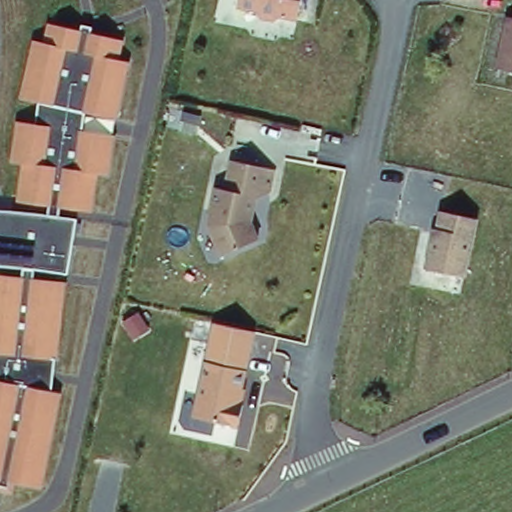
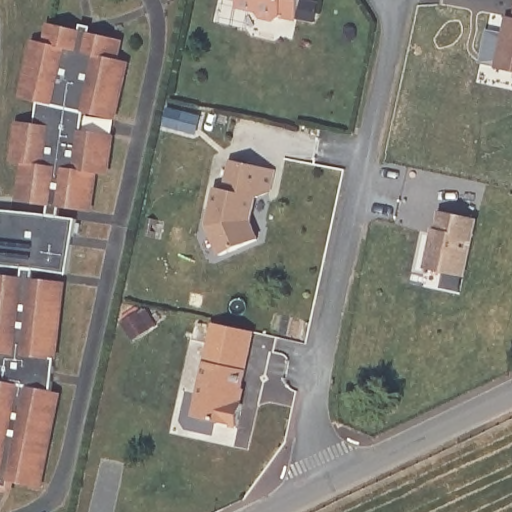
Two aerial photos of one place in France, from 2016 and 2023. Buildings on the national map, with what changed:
unchanged [(302,17),(286,14),(278,19),(266,15),(261,9),(242,4),(243,0),(306,0),(302,17)]
unchanged [(510,11),(512,11),(512,67),(498,64),(510,11)]
unchanged [(12,212),(20,165),(7,162),(15,119),(32,121),(37,101),(16,95),(29,38),(37,39),(43,16),(122,37),(120,60),(131,65),(119,121),(90,116),(85,133),(112,140),(107,174),(97,174),(92,212),(54,209),(53,218),(74,221),(65,273),(41,270),(37,281),(67,286),(47,390),(64,393),(41,488),(0,478),(0,211),(12,212)]
unchanged [(276,166),(272,189),(257,195),(252,218),(261,237),(223,252),(211,222),(219,184),(228,187),(234,157),(276,166)]
unchanged [(482,212),(468,271),(429,262),(438,222),(441,223),(445,205),(482,212)]
unchanged [(256,347),(245,397),(250,399),(245,421),(202,412),(217,338),(256,347)]

